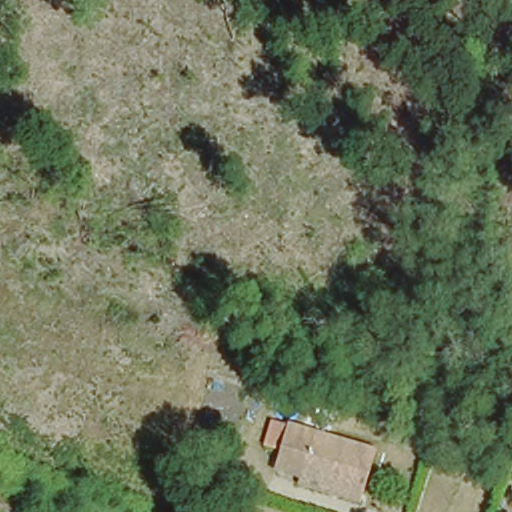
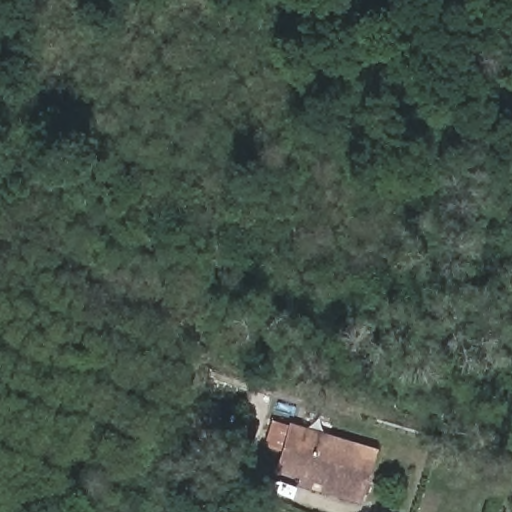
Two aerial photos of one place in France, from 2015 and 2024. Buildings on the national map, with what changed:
unchanged [(281,449),(267,445),(276,417),(373,447),(358,491),(298,473),(275,466),(281,449)]

